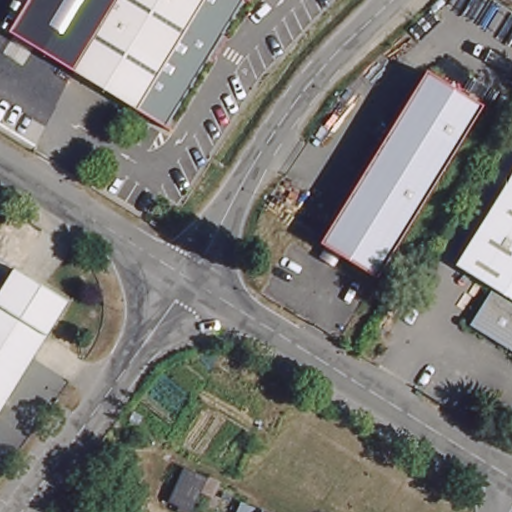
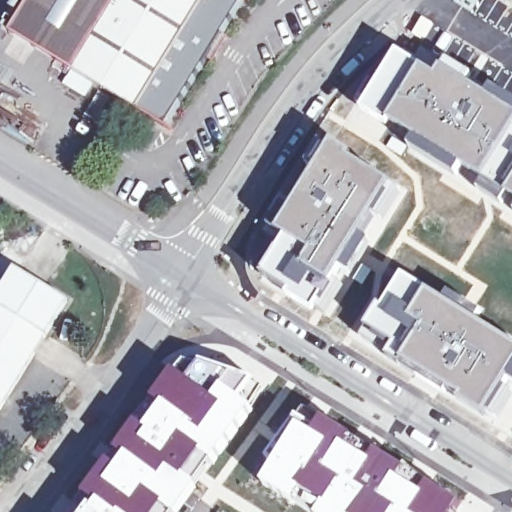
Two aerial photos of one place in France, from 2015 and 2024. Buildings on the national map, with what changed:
new [(72,72),(11,31),(30,0),(116,0),(72,72)]
unchanged [(135,110),(72,72),(116,0),(203,0),(135,110)]
new [(399,51),(423,67),(386,127),(361,111),(399,51)]
new [(423,67),(435,76),(447,59),(512,100),(512,135),(480,183),(407,137),(386,127),(423,67)]
demolished [(440,79),(482,106),(415,215),(382,195),(358,180),(416,87),(427,71),(440,79)]
new [(512,135),(512,184),(504,197),(480,183),(512,135)]
new [(284,238),(277,233),(319,160),(332,141),(404,191),(383,222),(369,242),(347,272),(317,318),(259,279),(284,238)]
demolished [(470,325),(491,290),(456,268),(512,177),(512,352),(470,325)]
demolished [(319,256),(325,245),(320,242),(358,180),(382,195),(415,215),(375,277),(339,253),(332,263),(319,256)]
new [(512,184),(512,203),(504,197),(512,184)]
unchanged [(0,292),(15,268),(66,301),(0,409),(0,292)]
new [(366,332),(364,331),(403,274),(443,300),(449,292),(483,314),(478,322),(512,343),(512,396),(492,425),(385,357),(389,350),(364,336),(366,332)]
new [(197,361),(254,383),(243,402),(223,388),(214,400),(186,379),(197,361)]
new [(137,422),(144,428),(159,409),(152,403),(175,371),(186,379),(214,400),(223,388),(243,402),(255,411),(199,486),(187,477),(185,480),(170,469),(162,480),(125,457),(122,460),(114,454),(137,422)]
new [(360,491),(359,492),(345,484),(344,486),(325,510),(302,494),(294,506),(264,487),(300,427),(312,435),(321,421),(352,439),(347,447),(370,462),(360,491)]
new [(370,462),(375,453),(407,472),(402,479),(399,477),(380,501),(370,495),(369,496),(360,491),(370,462)]
new [(118,466),(122,460),(125,457),(162,480),(170,469),(185,480),(187,477),(199,486),(200,487),(182,512),(114,512),(97,502),(95,504),(92,503),(82,497),(110,460),(118,466)]
demolished [(179,512),(162,505),(179,471),(212,487),(205,504),(194,500),(188,512),(179,512)]
new [(402,479),(419,487),(417,490),(422,493),(425,497),(417,512),(397,512),(380,501),(399,477),(402,479)]
new [(422,493),(428,485),(460,505),(456,512),(417,512),(425,497),(422,493)]
new [(370,495),(380,501),(397,512),(396,512),(358,512),(369,496),(370,495)]
new [(95,504),(97,502),(114,512),(85,512),(92,503),(95,504)]

